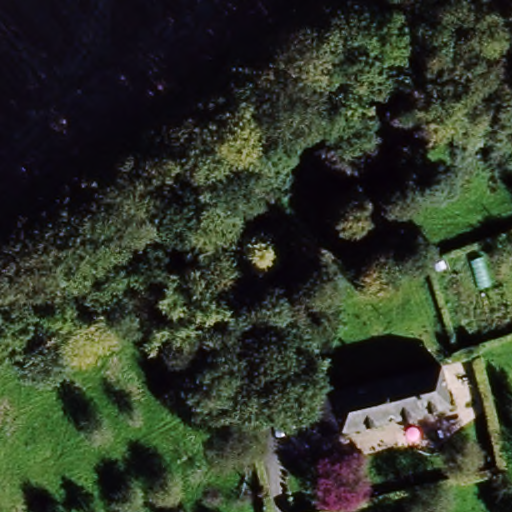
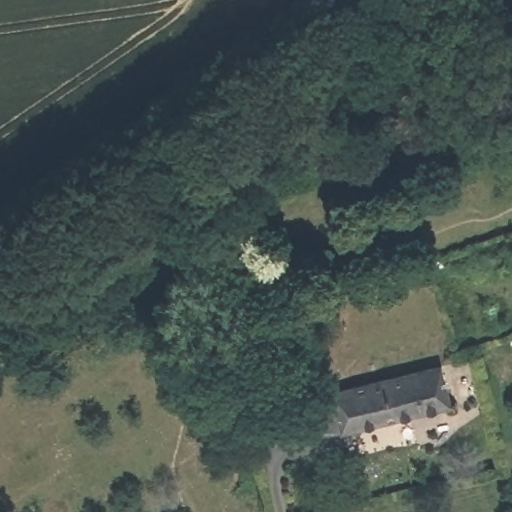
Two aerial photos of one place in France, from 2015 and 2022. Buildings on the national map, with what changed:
unchanged [(383,152),(405,137),(415,151),(392,165),(383,152)]
unchanged [(296,205),(320,189),(329,202),(305,217),(296,205)]
unchanged [(244,255),(224,267),(215,252),(235,240),(244,255)]
unchanged [(330,392),(431,367),(442,406),(340,431),(321,436),(310,395),(330,392)]

